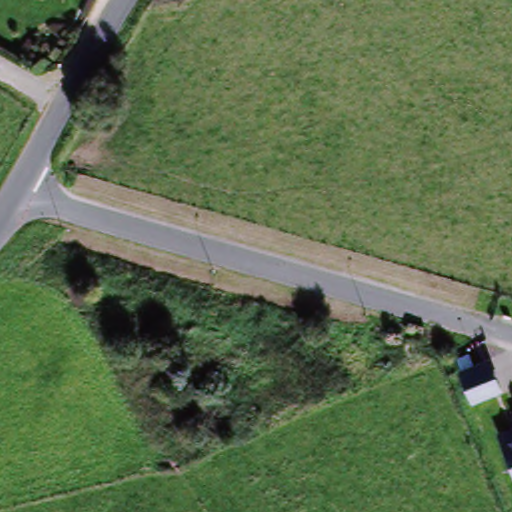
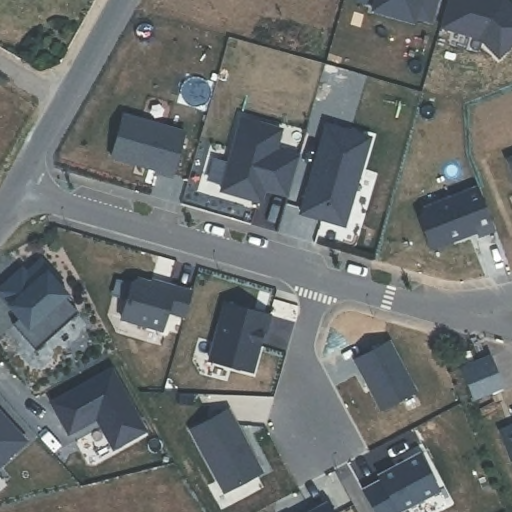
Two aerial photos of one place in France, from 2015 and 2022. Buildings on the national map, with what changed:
new [(427,19),(410,14),(408,18),(371,7),(372,2),(363,0),(432,0),(427,19)]
new [(512,7),(512,44),(499,56),(478,36),(442,26),(450,0),(506,0),(512,7)]
new [(181,131),(169,174),(109,156),(119,114),(181,131)]
new [(285,195),(261,187),(258,200),(218,190),(239,117),(278,129),(272,149),(296,156),(285,195)]
new [(367,136),(341,224),(298,211),(324,124),(367,136)]
new [(512,155),(512,175),(505,158),(512,155)]
new [(476,185),(493,232),(432,249),(418,205),(476,185)]
new [(18,268),(22,273),(37,260),(58,284),(55,286),(64,296),(60,299),(74,315),(31,352),(8,326),(16,319),(0,302),(0,284),(18,268)]
new [(189,290),(182,316),(165,311),(160,329),(119,317),(130,281),(136,278),(154,283),(155,281),(172,286),(189,290)]
new [(267,314),(263,331),(258,330),(255,340),(257,341),(249,370),(207,358),(223,302),(267,314)]
new [(386,340),(413,390),(379,408),(352,358),(386,340)]
unchanged [(488,357),(500,386),(474,397),(462,368),(488,357)]
new [(111,373),(145,435),(113,452),(96,421),(68,437),(51,406),(111,373)]
new [(222,490),(189,430),(226,409),(259,470),(222,490)]
new [(23,436),(0,457),(0,412),(23,436)]
unchanged [(512,435),(512,466),(501,441),(512,435)]
new [(402,512),(373,512),(363,493),(382,483),(380,478),(420,456),(439,492),(402,512)]
new [(329,512),(306,512),(324,502),(329,512)]

